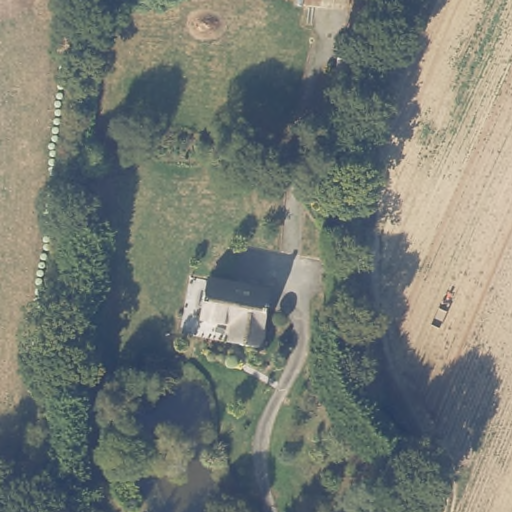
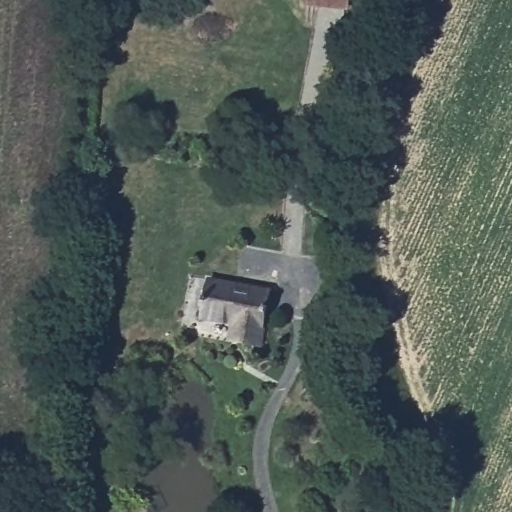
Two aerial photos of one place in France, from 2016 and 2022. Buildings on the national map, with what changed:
unchanged [(265,280),(255,338),(227,332),(227,313),(197,308),(204,269),(265,280)]

